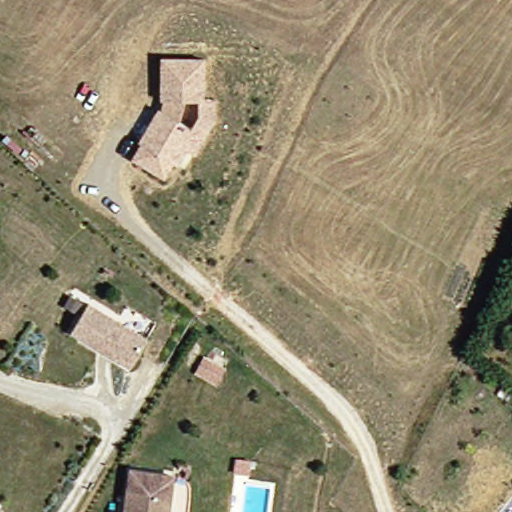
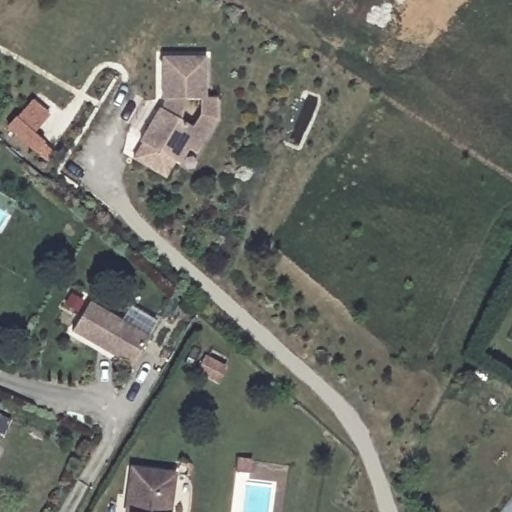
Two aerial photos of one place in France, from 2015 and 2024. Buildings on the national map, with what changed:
unchanged [(133,160),(162,100),(165,57),(208,57),(207,98),(218,99),(217,117),(192,156),(187,155),(180,167),(177,165),(168,180),(133,160)]
unchanged [(89,306),(150,340),(134,369),(74,335),(89,306)]
unchanged [(173,512),(130,512),(134,465),(177,470),(173,512)]

